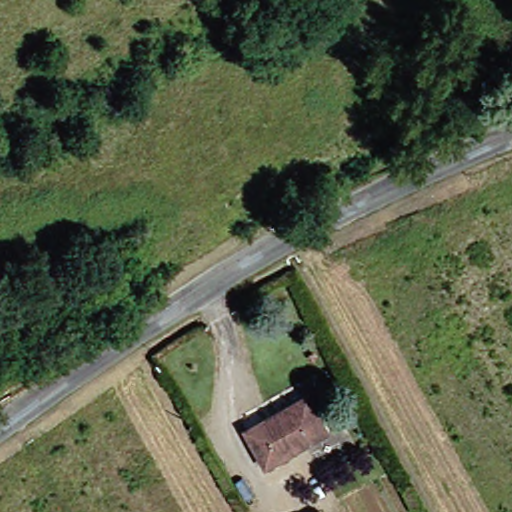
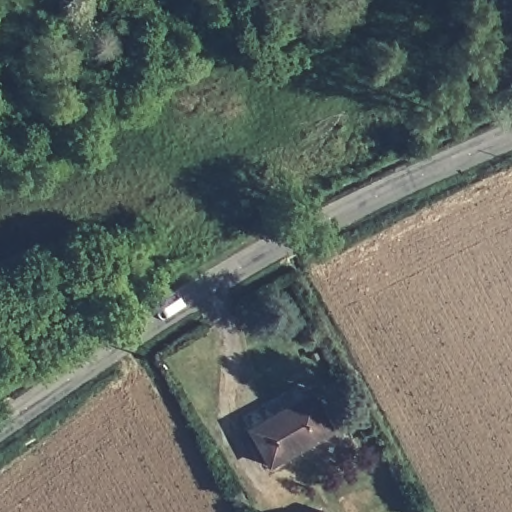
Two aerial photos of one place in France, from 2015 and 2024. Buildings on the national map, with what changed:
unchanged [(273,467),(252,434),(318,396),(338,429),(273,467)]

